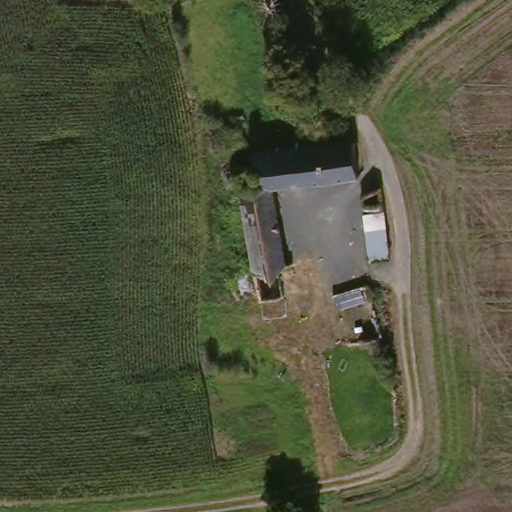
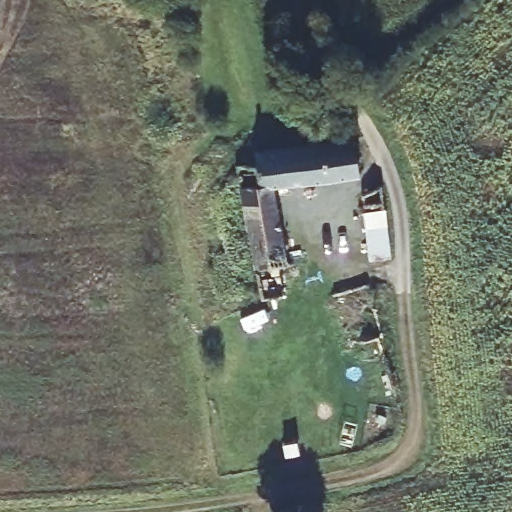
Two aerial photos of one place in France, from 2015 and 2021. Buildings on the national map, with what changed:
unchanged [(248,183),(243,180),(242,172),(246,167),(266,164),(265,153),(363,143),(366,174),(280,187),(291,263),(261,264),(248,183)]
unchanged [(364,199),(381,193),(391,263),(373,265),(364,199)]
unchanged [(334,289),(369,282),(371,304),(338,312),(334,289)]

